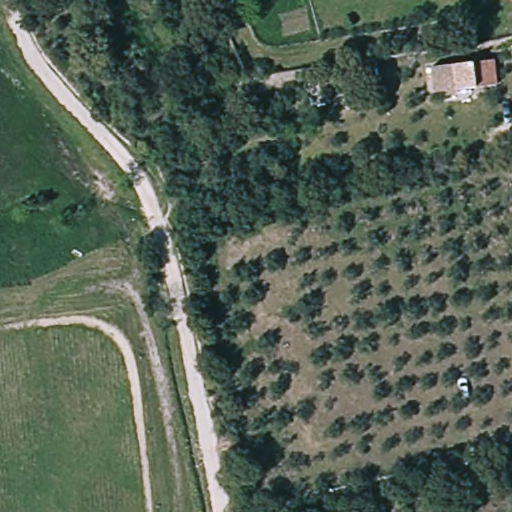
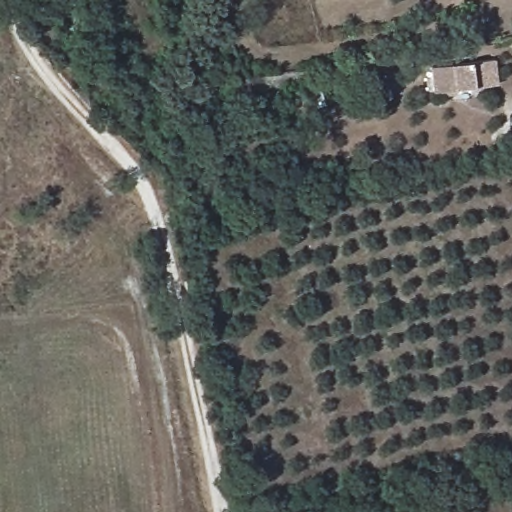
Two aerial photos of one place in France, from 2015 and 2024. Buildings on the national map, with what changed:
unchanged [(436,68),(462,66),(463,91),(439,95),(436,68)]

